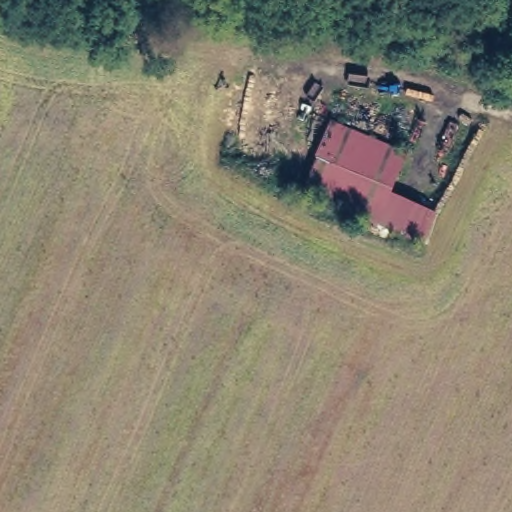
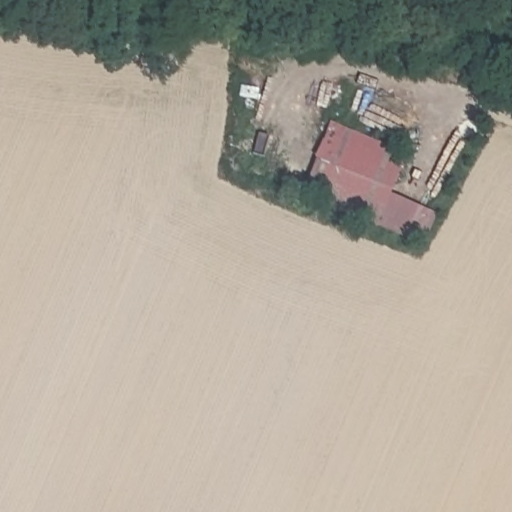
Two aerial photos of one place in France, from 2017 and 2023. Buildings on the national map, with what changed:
unchanged [(390,194),(377,226),(306,190),(335,131),(404,165),(390,194)]
unchanged [(440,216),(427,246),(377,226),(390,194),(440,216)]

